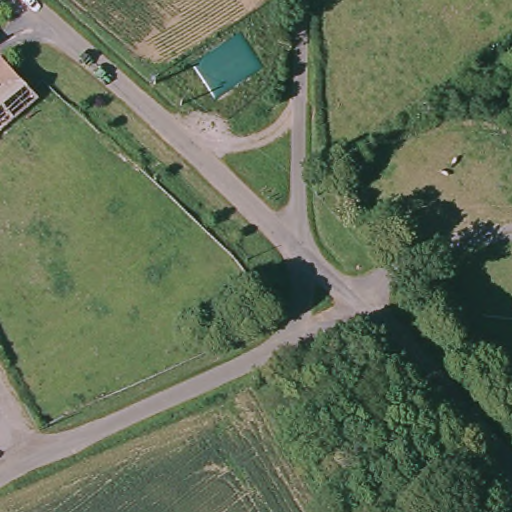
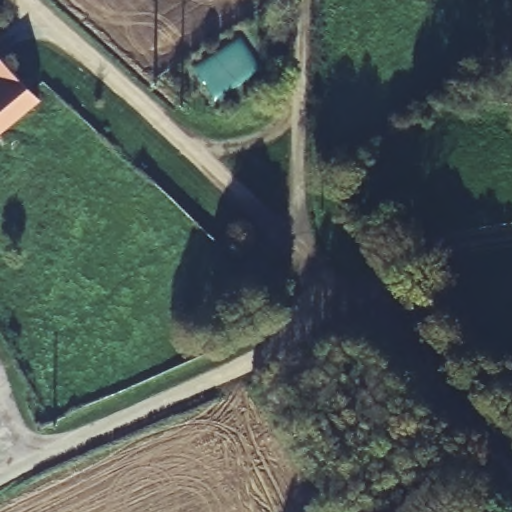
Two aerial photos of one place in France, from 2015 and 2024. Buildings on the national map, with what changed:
unchanged [(37,90),(0,123),(0,47),(32,84),(37,90)]

